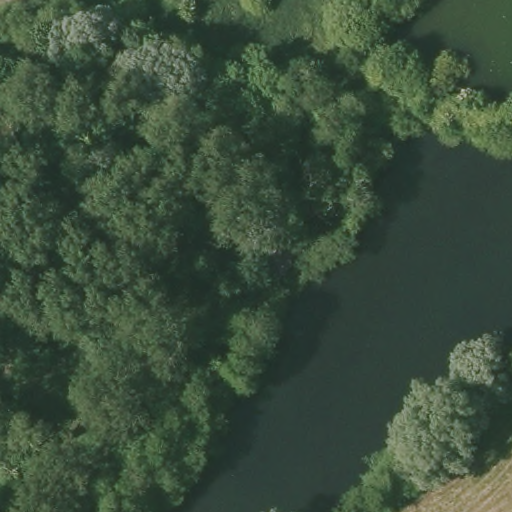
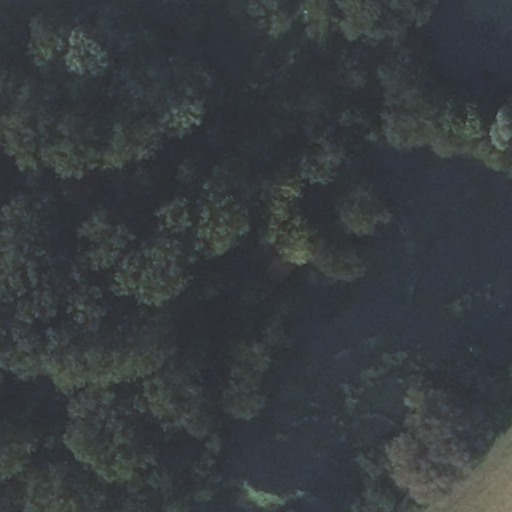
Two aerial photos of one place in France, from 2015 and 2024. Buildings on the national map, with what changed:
unchanged [(178,400),(206,365),(226,376),(198,411),(178,400)]

